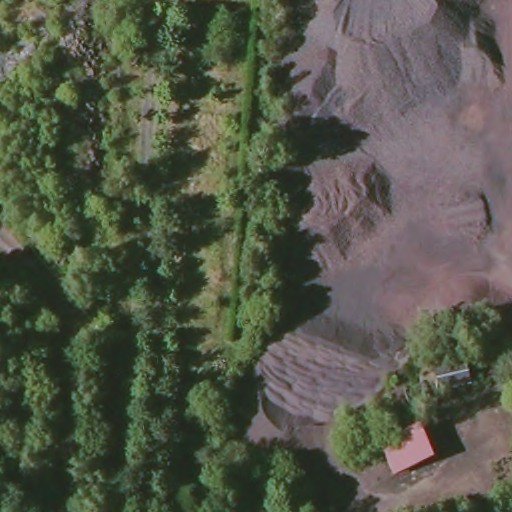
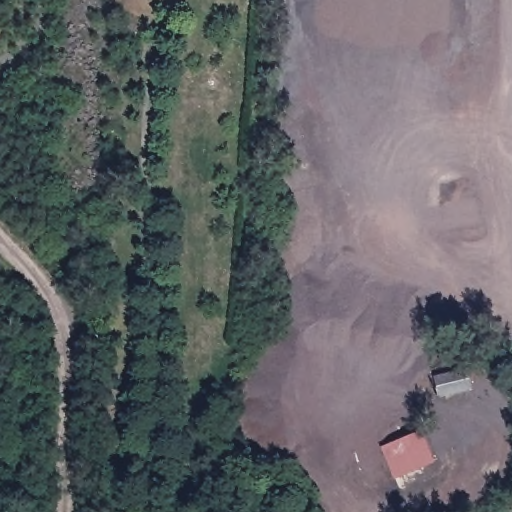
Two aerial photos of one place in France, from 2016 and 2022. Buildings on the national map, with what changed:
unchanged [(437,397),(425,402),(420,385),(433,380),(468,372),(470,388),(437,397)]
unchanged [(422,428),(436,460),(393,480),(381,448),(422,428)]

